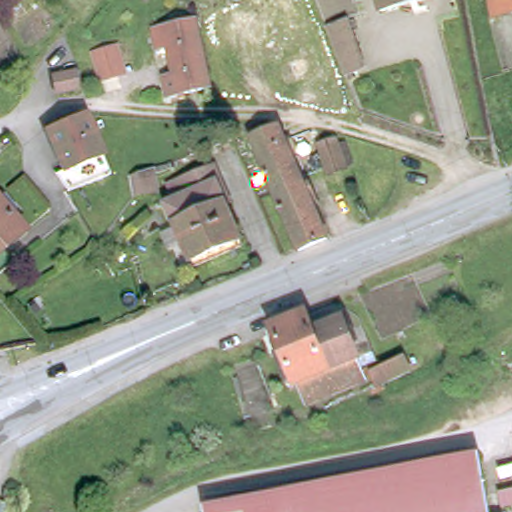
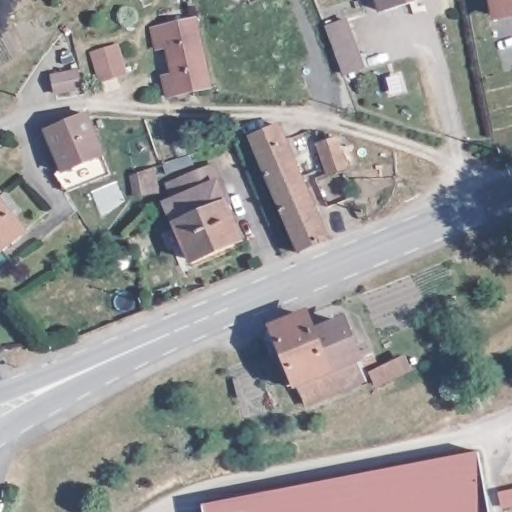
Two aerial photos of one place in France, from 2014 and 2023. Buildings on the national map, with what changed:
unchanged [(233,1),(232,0),(236,0),(233,1)]
unchanged [(384,12),(380,0),(422,0),(384,12)]
unchanged [(500,0),(512,0),(512,18),(503,19),(500,0)]
unchanged [(217,83),(174,95),(169,76),(176,74),(169,46),(161,48),(157,31),(200,20),(217,83)]
unchanged [(348,26),(364,76),(346,81),(330,32),(348,26)]
unchanged [(107,56),(123,51),(131,48),(140,74),(132,76),(116,82),(107,56)]
unchanged [(67,74),(95,66),(100,83),(72,91),(67,74)]
unchanged [(57,153),(47,129),(65,123),(88,113),(103,153),(104,153),(111,171),(93,178),(76,185),(66,189),(64,182),(61,175),(60,170),(62,169),(57,153)]
unchanged [(314,239),(296,246),(254,148),(250,138),(278,125),(283,136),(326,234),(314,239)]
unchanged [(348,173),(333,177),(326,157),(341,153),(348,173)]
unchanged [(171,210),(179,207),(167,178),(208,162),(214,177),(220,191),(243,247),(194,266),(171,210)]
unchanged [(146,181),(148,201),(134,203),(131,182),(133,182),(146,181)]
unchanged [(0,199),(3,196),(17,212),(10,218),(25,233),(4,251),(13,263),(0,274),(0,199)]
unchanged [(262,329),(272,325),(264,303),(297,289),(308,316),(338,304),(358,355),(291,381),(285,360),(276,363),(262,329)]
unchanged [(373,356),(372,352),(397,342),(400,349),(397,351),(385,357),(369,363),(367,358),(373,356)]
unchanged [(472,452),(483,512),(198,512),(197,504),(472,452)]

